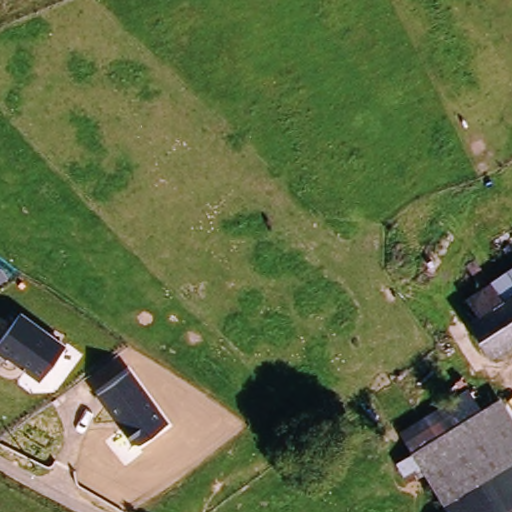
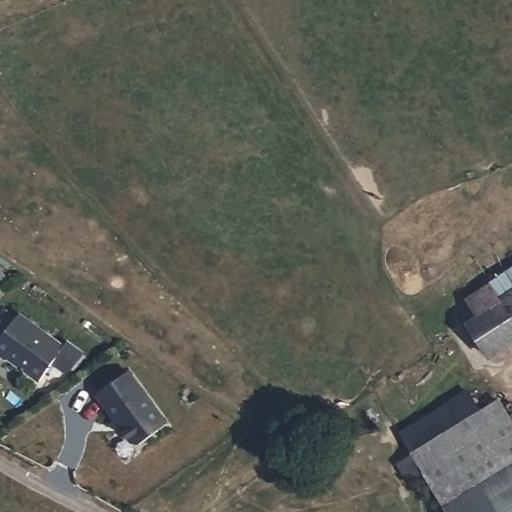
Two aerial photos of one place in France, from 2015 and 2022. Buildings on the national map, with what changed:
unchanged [(467,300),(489,286),(499,303),(512,294),(512,341),(488,357),(467,324),(477,317),(467,300)]
unchanged [(64,344),(40,381),(6,359),(6,360),(0,355),(0,344),(21,315),(64,344)]
unchanged [(168,424),(136,448),(96,397),(129,371),(168,424)]
unchanged [(414,477),(402,459),(417,450),(404,430),(470,389),(482,408),(502,396),(512,412),(512,512),(457,512),(429,468),(414,477)]

